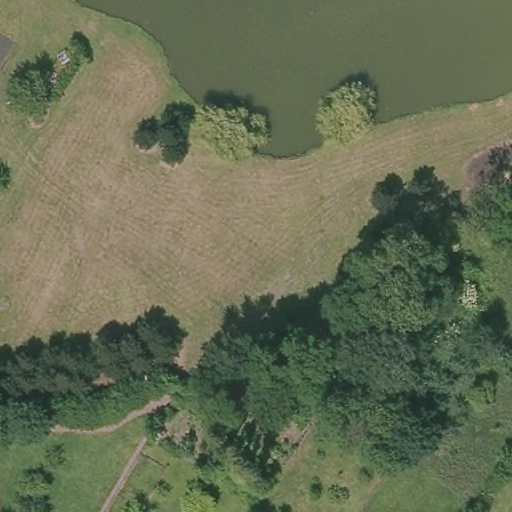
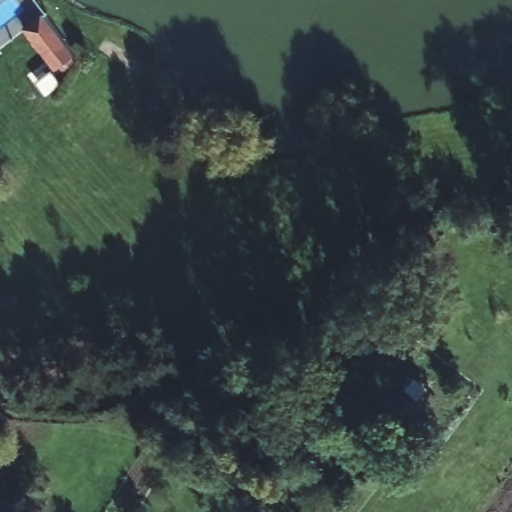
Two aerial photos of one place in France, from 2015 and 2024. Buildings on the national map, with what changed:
new [(77,60),(62,71),(58,66),(52,70),(20,28),(41,12),(77,60)]

